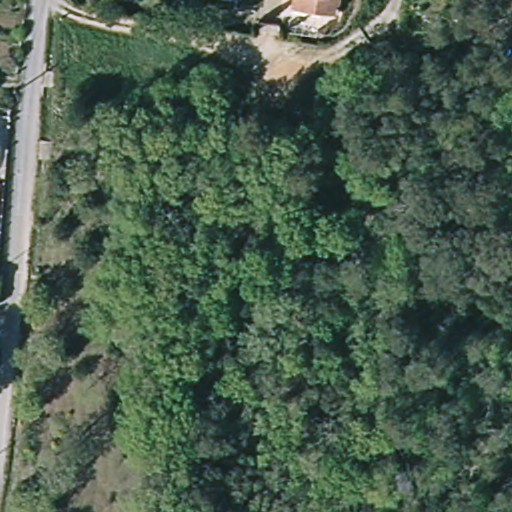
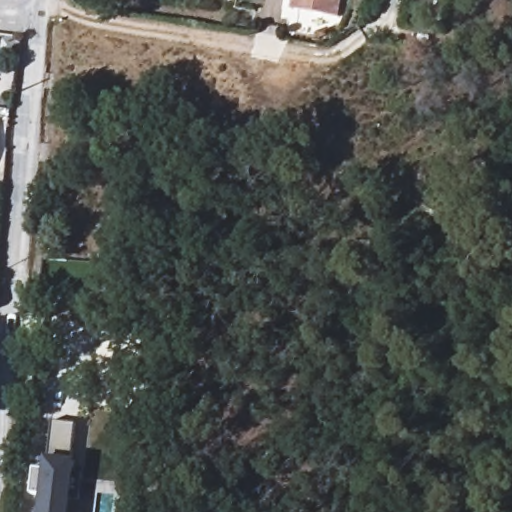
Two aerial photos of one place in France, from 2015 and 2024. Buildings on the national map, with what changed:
unchanged [(344,2),(340,22),(331,20),(334,1),(344,2)]
new [(75,422),(72,458),(78,460),(76,470),(83,473),(80,499),(73,498),(72,512),(39,512),(41,496),(31,494),(34,468),(44,470),(45,457),(52,420),(75,422)]

